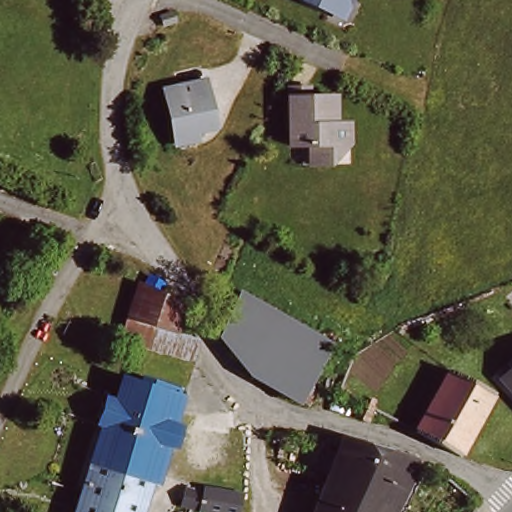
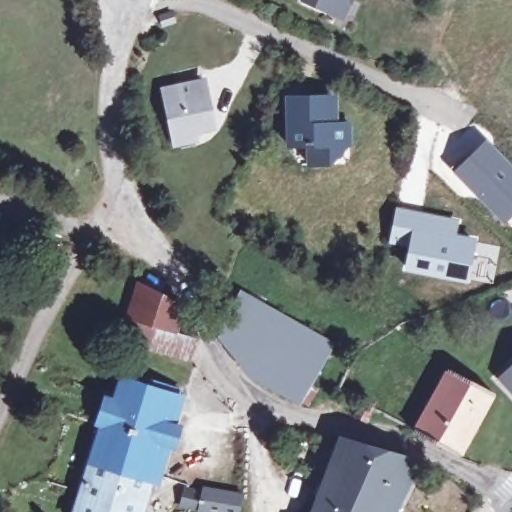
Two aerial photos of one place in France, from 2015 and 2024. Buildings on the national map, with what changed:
unchanged [(304,1),(304,0),(352,0),(352,1),(344,19),(329,13),(304,1)]
unchanged [(172,14),(175,23),(164,27),(161,18),(172,14)]
unchanged [(174,131),(166,91),(204,83),(214,128),(192,133),(176,136),(174,131)]
unchanged [(306,146),(294,146),(293,99),(293,88),(313,88),(313,98),(336,98),(337,125),(355,125),(355,145),(349,145),(337,158),(337,166),(315,166),(307,166),(306,146)]
new [(486,138),(512,164),(512,217),(504,225),(452,171),(486,138)]
new [(395,206),(460,219),(457,233),(478,238),(467,282),(402,271),(407,247),(387,244),(395,206)]
unchanged [(184,311),(178,334),(197,340),(191,360),(121,340),(139,283),(146,287),(151,278),(164,285),(159,294),(183,306),(184,311)]
unchanged [(310,408),(300,402),(252,376),(221,338),(242,294),(286,320),(332,345),(311,383),(320,389),(310,408)]
unchanged [(500,379),(510,369),(507,365),(512,360),(512,392),(500,379)]
unchanged [(432,442),(414,433),(450,370),(494,394),(459,457),(432,442)]
unchanged [(189,436),(182,461),(171,458),(163,490),(153,487),(145,512),(84,512),(116,409),(120,410),(127,386),(145,393),(149,381),(189,395),(185,407),(178,433),(189,436)]
unchanged [(373,411),(367,423),(355,417),(360,405),(373,411)]
unchanged [(413,458),(410,472),(389,512),(314,512),(339,446),(344,437),(413,458)]
unchanged [(243,497),(240,512),(205,512),(202,512),(183,507),(187,491),(206,496),(207,491),(243,497)]

